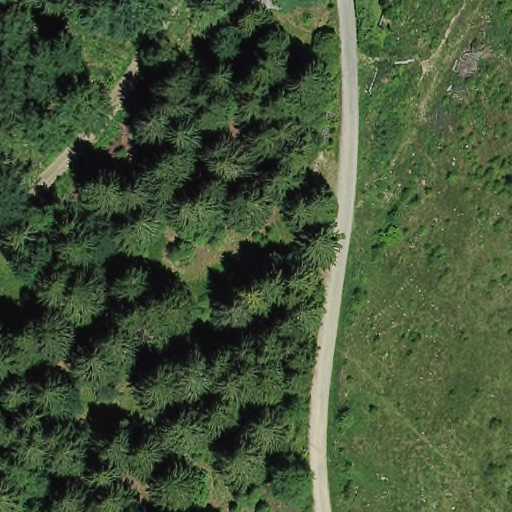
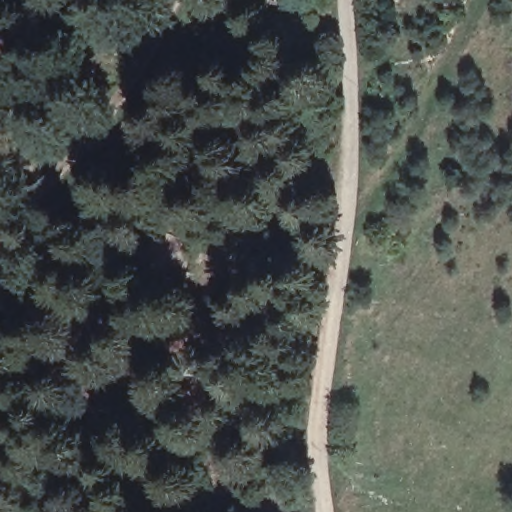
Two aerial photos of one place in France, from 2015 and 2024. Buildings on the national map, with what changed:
unchanged [(254,0),(281,0),(280,4),(254,0)]

